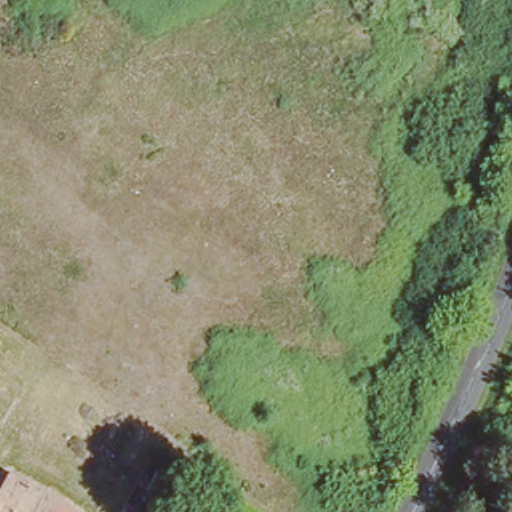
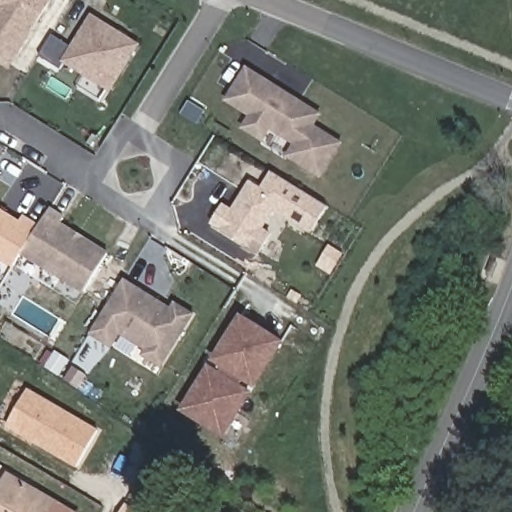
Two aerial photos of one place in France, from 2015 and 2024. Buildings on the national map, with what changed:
new [(0,63),(0,0),(52,0),(10,70),(0,63)]
new [(111,94),(64,65),(61,70),(39,56),(53,35),(71,46),(91,14),(141,44),(111,94)]
new [(270,130),(263,143),(241,129),(248,116),(224,101),(246,66),(322,113),(315,125),(343,143),(320,180),(285,157),(293,145),(270,130)]
new [(264,229),(272,234),(260,254),(211,225),(223,202),(232,209),(249,180),(261,189),(271,171),(329,207),(311,235),(275,211),(264,229)]
new [(52,207),(66,217),(63,223),(110,252),(84,294),(21,255),(13,268),(0,260),(0,208),(21,221),(25,215),(41,225),(52,207)]
new [(174,301),(196,315),(162,369),(140,356),(144,350),(121,335),(115,345),(111,350),(89,335),(124,278),(170,307),(174,301)]
new [(241,385),(253,392),(225,439),(180,411),(208,365),(220,371),(222,368),(211,361),(241,314),(285,340),(256,389),(243,382),(241,385)]
unchanged [(0,342),(0,334),(4,337),(0,342)]
new [(31,390),(101,430),(77,468),(7,426),(31,390)]
unchanged [(181,468),(171,485),(156,477),(166,460),(167,458),(182,466),(181,468)]
unchanged [(41,488),(79,508),(77,512),(0,512),(0,486),(9,470),(41,488)]
unchanged [(123,512),(133,495),(135,492),(159,506),(156,512),(123,512)]

